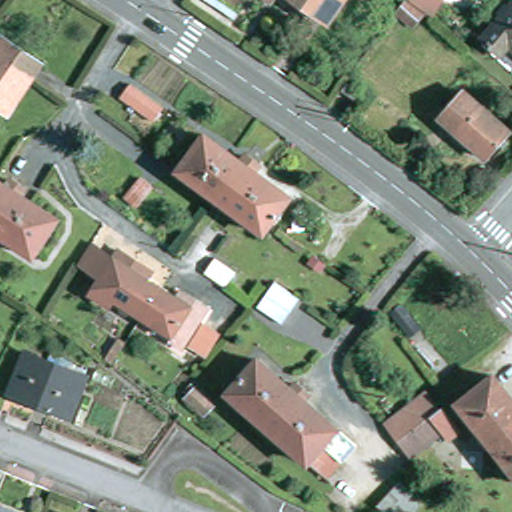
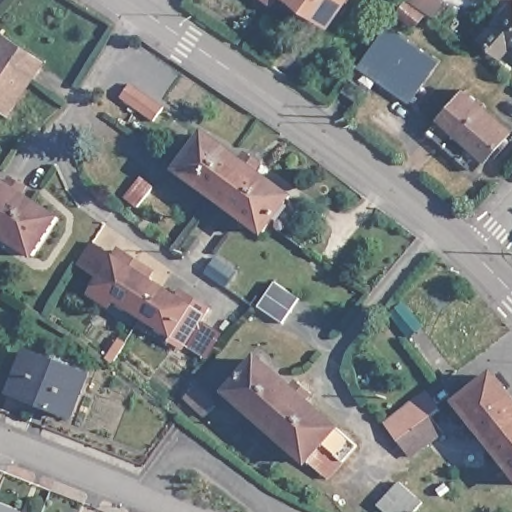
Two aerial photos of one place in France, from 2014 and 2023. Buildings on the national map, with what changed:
unchanged [(270,0),(291,0),(284,10),(270,0)]
unchanged [(297,0),(360,0),(341,30),(297,0)]
unchanged [(414,29),(395,15),(406,0),(424,17),(414,29)]
unchanged [(409,0),(438,0),(429,14),(409,0)]
unchanged [(512,7),(512,47),(502,58),(483,40),(512,7)]
new [(439,61),(409,102),(357,66),(387,25),(439,61)]
unchanged [(0,46),(2,43),(40,69),(31,81),(6,121),(0,117),(0,46)]
unchanged [(512,130),(512,140),(495,161),(449,120),(472,94),(512,130)]
unchanged [(166,124),(157,138),(124,114),(134,100),(166,124)]
unchanged [(374,131),(370,138),(359,130),(364,124),(374,131)]
unchanged [(271,237),(186,178),(212,139),(247,164),(251,158),(265,168),(261,174),(297,199),(271,237)]
unchanged [(0,235),(0,180),(17,192),(21,185),(35,194),(32,202),(70,226),(44,264),(0,235)]
unchanged [(158,207),(144,227),(127,216),(142,197),(158,207)]
unchanged [(109,299),(105,304),(91,294),(117,255),(142,271),(139,276),(157,288),(137,318),(109,299)]
unchanged [(221,273),(242,287),(232,302),(211,288),(221,273)]
unchanged [(179,293),(191,301),(203,309),(177,349),(165,342),(167,337),(137,318),(157,288),(175,299),(179,293)]
unchanged [(303,317),(295,328),(289,324),(281,334),(264,323),(281,300),(303,317)]
unchanged [(430,340),(417,351),(399,329),(411,318),(430,340)]
unchanged [(212,335),(197,357),(182,348),(197,324),(212,335)]
unchanged [(89,377),(75,418),(17,396),(32,355),(89,377)]
unchanged [(117,379),(110,373),(122,356),(129,360),(117,379)]
unchanged [(326,478),(225,393),(255,359),(355,445),(326,478)]
unchanged [(463,407),(497,379),(512,398),(512,466),(463,407)]
unchanged [(221,419),(210,431),(189,413),(200,401),(221,419)]
unchanged [(397,437),(437,408),(451,426),(441,432),(452,447),(421,469),(397,437)]
unchanged [(427,512),(403,512),(398,508),(409,496),(427,512)]
unchanged [(0,509),(7,512),(0,512),(0,509)]

